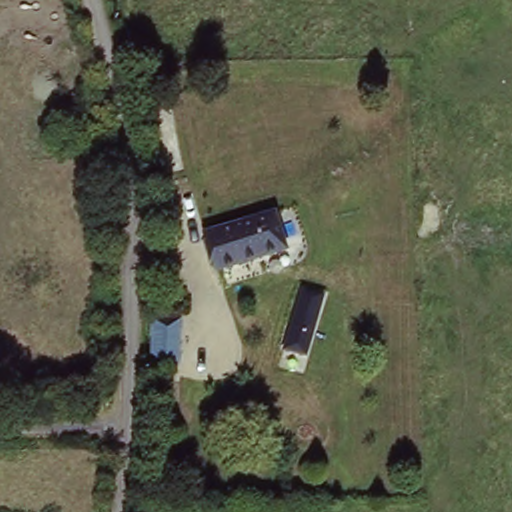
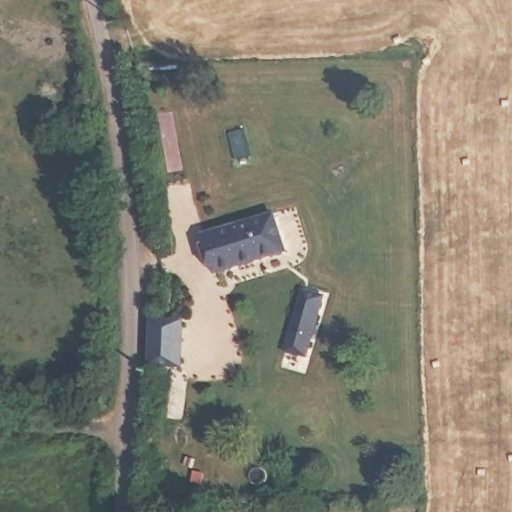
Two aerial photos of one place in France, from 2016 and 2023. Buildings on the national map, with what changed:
unchanged [(276,209),(286,245),(217,266),(207,229),(276,209)]
unchanged [(324,296),(304,354),(284,348),(304,289),(324,296)]
unchanged [(178,322),(175,365),(150,364),(151,353),(152,320),(178,322)]

